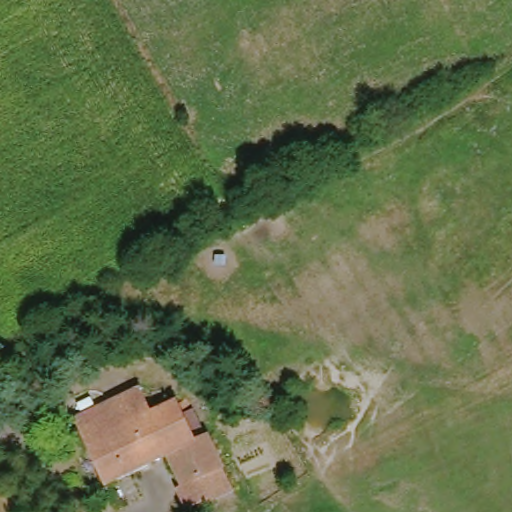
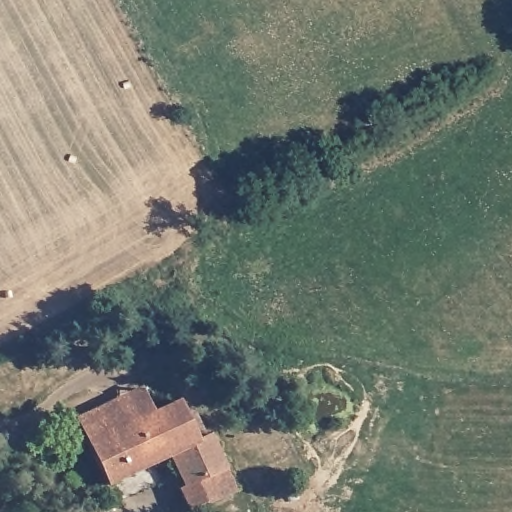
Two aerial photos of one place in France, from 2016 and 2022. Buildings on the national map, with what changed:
unchanged [(176,419),(183,417),(194,442),(208,436),(231,488),(183,507),(173,486),(178,483),(165,454),(102,483),(82,440),(168,401),(176,419)]

